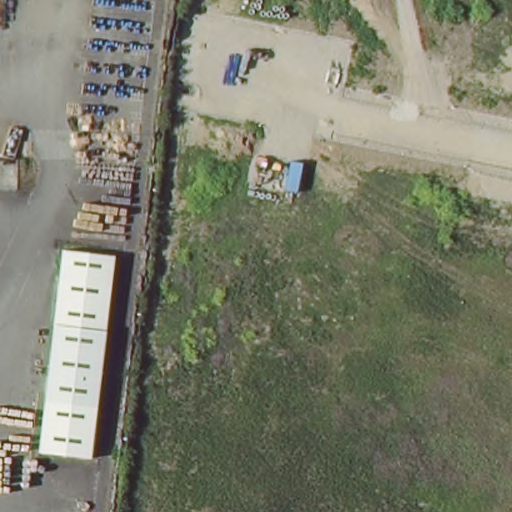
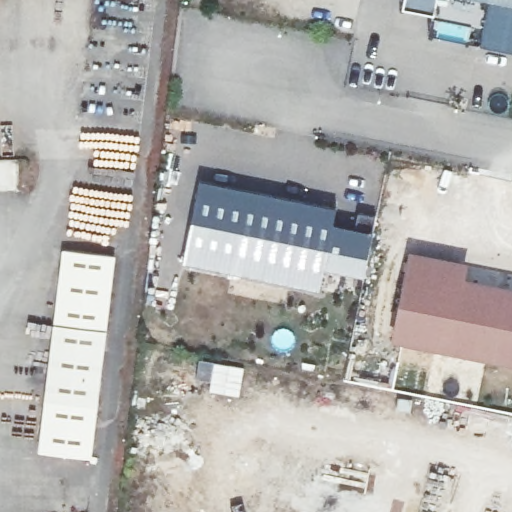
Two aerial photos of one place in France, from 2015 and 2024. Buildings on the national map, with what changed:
new [(512,0),(512,49),(429,33),(432,14),(401,8),(403,0),(512,0)]
new [(325,266),(320,291),(183,262),(200,182),(375,217),(363,274),(325,266)]
unchanged [(62,252),(114,256),(90,457),(38,451),(62,252)]
new [(396,338),(413,254),(468,265),(465,280),(512,289),(512,361),(396,338)]

